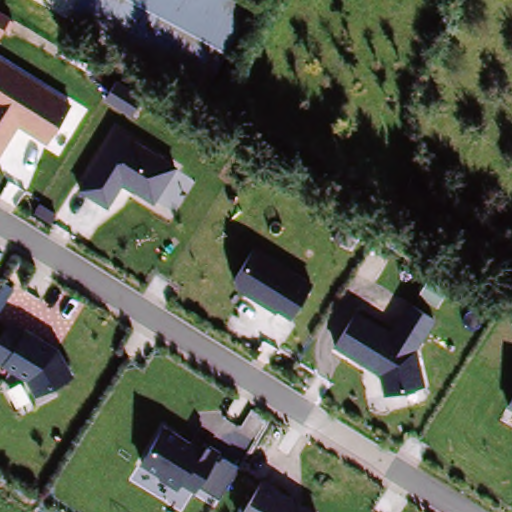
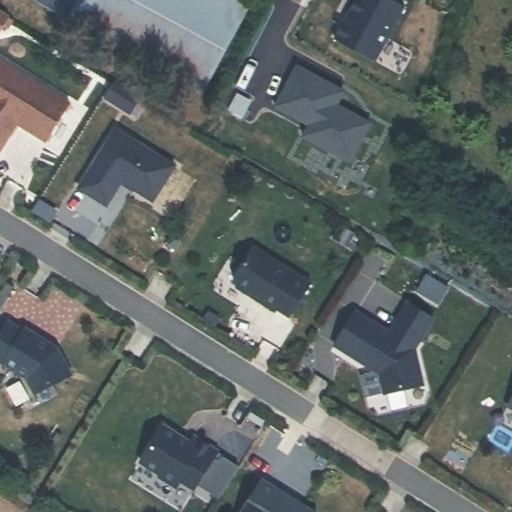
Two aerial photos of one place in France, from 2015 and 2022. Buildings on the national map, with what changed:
unchanged [(207,99),(63,16),(35,0),(238,0),(255,10),(207,99)]
new [(355,0),(403,0),(406,1),(376,56),(336,34),(355,0)]
new [(9,11),(0,27),(0,6),(9,11)]
unchanged [(45,143),(18,124),(0,154),(0,59),(70,103),(45,143)]
new [(299,61),(344,86),(336,101),(370,119),(349,158),(304,133),(310,121),(276,102),(299,61)]
new [(119,76),(145,91),(134,109),(108,93),(119,76)]
unchanged [(176,166),(153,205),(121,185),(106,208),(76,190),(115,126),(176,166)]
unchanged [(289,320),(231,285),(254,246),(311,283),(289,320)]
unchanged [(356,309),(388,329),(406,300),(436,320),(416,351),(424,386),(384,395),(379,375),(334,347),(356,309)]
unchanged [(34,396),(25,378),(0,363),(0,332),(8,319),(23,328),(25,325),(58,348),(73,376),(34,396)]
unchanged [(512,398),(512,409),(507,407),(512,398)]
unchanged [(194,492),(179,483),(176,489),(160,479),(159,476),(138,463),(163,424),(193,442),(196,437),(218,452),(194,492)]
unchanged [(261,476),(314,512),(239,512),(261,476)]

